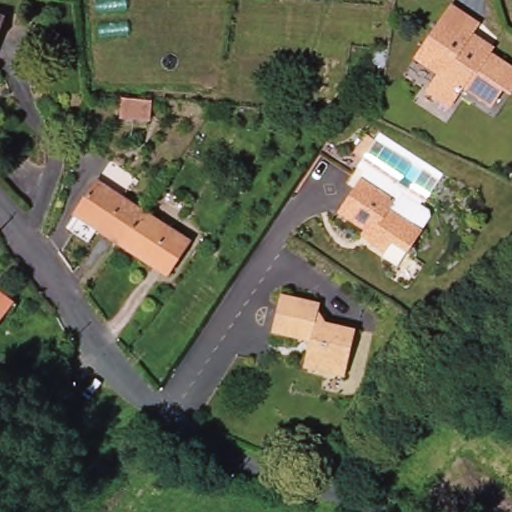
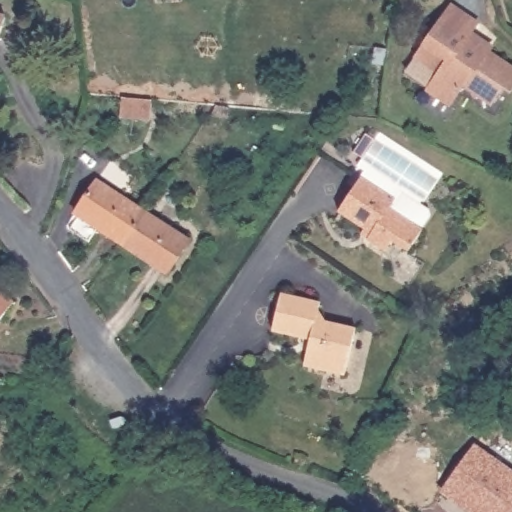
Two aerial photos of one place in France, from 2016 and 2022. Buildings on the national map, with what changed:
unchanged [(510,92),(501,87),(491,104),(463,86),(450,106),(427,90),(437,74),(415,59),(449,7),(477,25),(470,36),(488,48),(486,51),(512,68),(512,89),(510,92)]
unchanged [(0,46),(0,15),(10,19),(0,46)]
unchanged [(154,125),(124,122),(126,101),(156,105),(154,125)]
unchanged [(370,139),(380,145),(368,164),(357,157),(370,139)]
unchanged [(79,211),(100,179),(146,210),(124,241),(79,211)]
unchanged [(372,232),(345,214),(368,179),(403,202),(407,195),(436,215),(425,230),(410,254),(398,246),(392,255),(375,244),(376,242),(368,237),(372,232)]
unchanged [(146,210),(192,240),(171,272),(124,241),(146,210)]
unchanged [(18,303),(0,329),(0,290),(3,292),(18,303)]
unchanged [(327,302),(325,310),(331,324),(359,332),(346,378),(306,366),(313,341),(278,330),(290,290),(327,302)]
new [(467,512),(440,493),(475,444),(512,471),(512,512),(467,512)]

